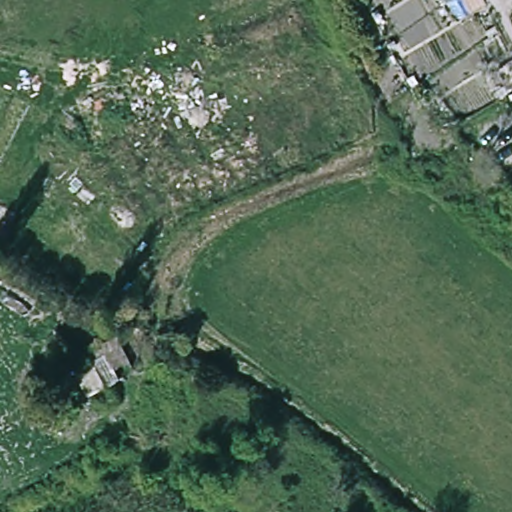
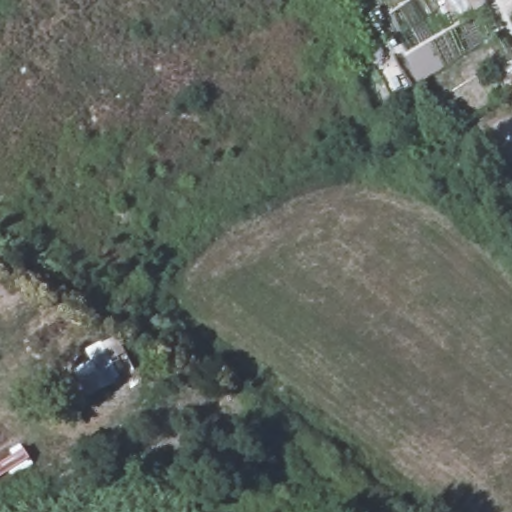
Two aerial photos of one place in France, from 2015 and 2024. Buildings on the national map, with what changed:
unchanged [(67,365),(83,356),(79,348),(110,332),(126,366),(79,389),(67,365)]

